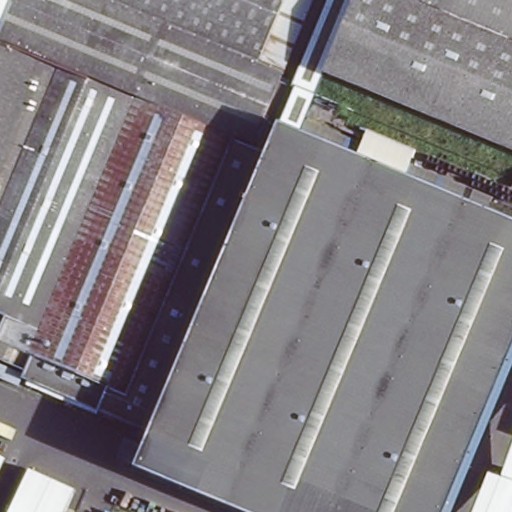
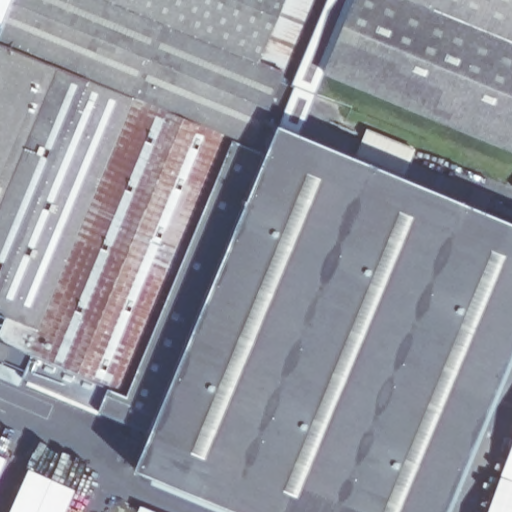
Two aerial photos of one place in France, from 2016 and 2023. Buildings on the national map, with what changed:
unchanged [(12,339),(0,334),(0,0),(314,0),(284,75),(266,121),(272,124),(185,344),(145,435),(90,413),(96,398),(50,380),(44,395),(0,377),(0,371),(12,339)]
unchanged [(284,75),(290,78),(323,0),(363,0),(332,72),(305,136),(272,124),(266,121),(284,75)]
unchanged [(512,148),(332,72),(363,0),(512,0),(512,148)]
unchanged [(145,435),(185,344),(272,124),(305,136),(512,219),(512,374),(457,512),(271,512),(152,465),(160,441),(145,435)]
unchanged [(0,469),(0,456),(5,458),(0,469)]
unchanged [(66,512),(10,512),(29,468),(75,490),(66,512)]

